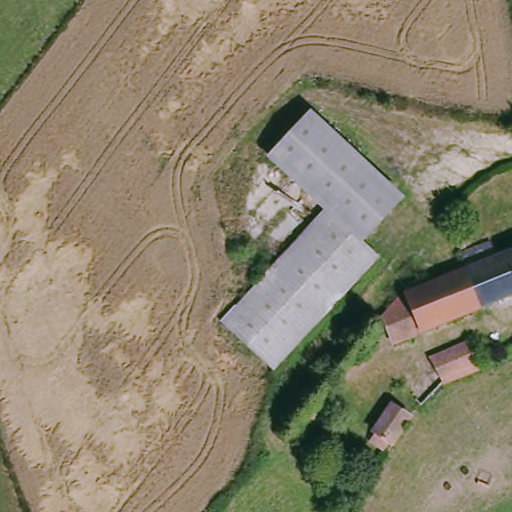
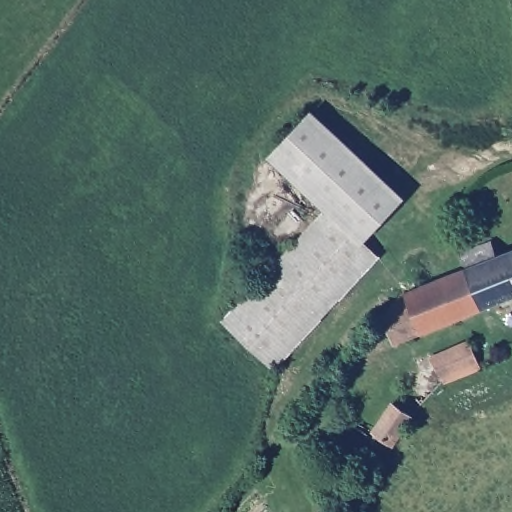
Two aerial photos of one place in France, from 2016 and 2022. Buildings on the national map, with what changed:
unchanged [(334,207),(276,152),(317,110),(408,198),(368,239),(334,207)]
unchanged [(229,318),(334,207),(368,239),(381,255),(279,365),(229,318)]
unchanged [(407,291),(472,266),(466,250),(497,239),(502,254),(512,250),(512,295),(397,341),(386,315),(407,291)]
unchanged [(437,353),(476,340),(477,343),(486,365),(447,380),(437,353)]
unchanged [(413,417),(395,445),(390,442),(386,450),(375,443),(380,434),(376,431),(394,403),(413,417)]

